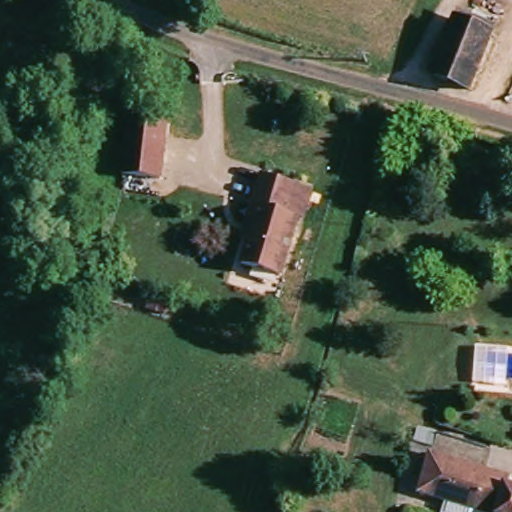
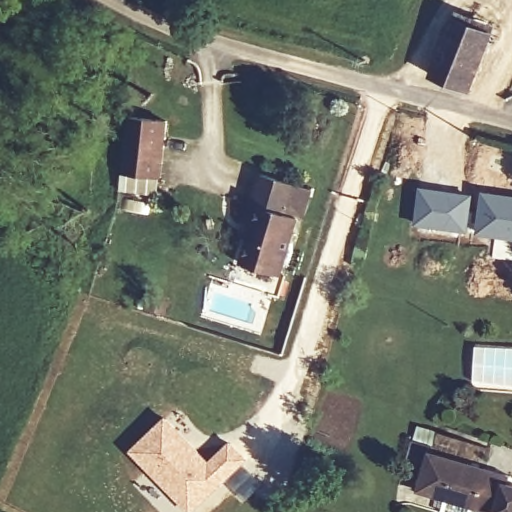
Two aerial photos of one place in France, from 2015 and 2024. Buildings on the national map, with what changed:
unchanged [(479,31),(466,87),(434,80),(445,25),(479,31)]
new [(126,135),(164,140),(157,197),(119,192),(126,135)]
unchanged [(278,277),(245,268),(250,244),(241,241),(259,180),(293,189),(284,220),(292,223),(278,277)]
new [(419,186),(474,194),(468,235),(413,227),(419,186)]
new [(482,190),(512,194),(512,262),(490,258),(492,239),(475,236),(482,190)]
demolished [(512,355),(512,391),(479,391),(479,353),(512,355)]
new [(168,415),(209,458),(230,441),(248,462),(192,512),(188,512),(129,450),(168,415)]
unchanged [(435,435),(485,451),(480,470),(512,481),(512,512),(466,512),(415,495),(435,435)]

